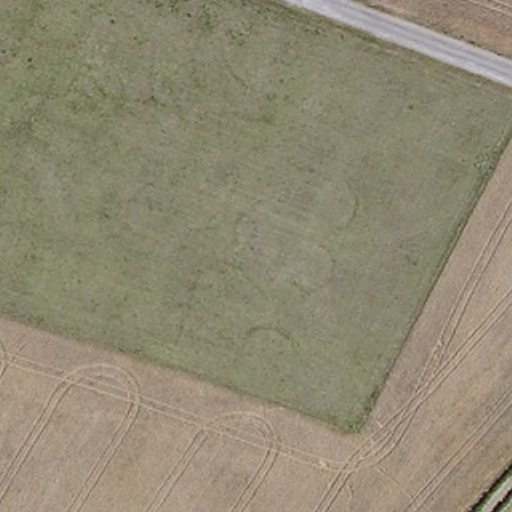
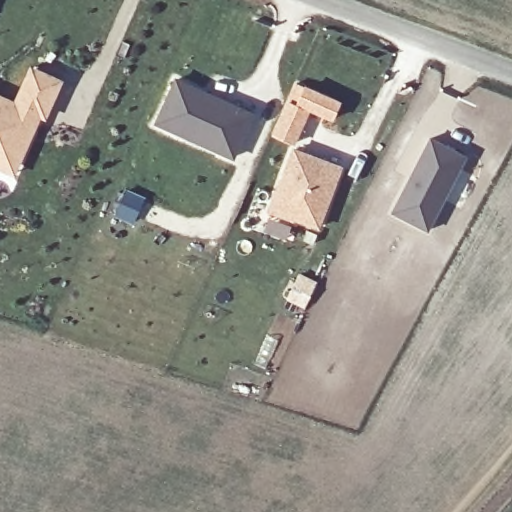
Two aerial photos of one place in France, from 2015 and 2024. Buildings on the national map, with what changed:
new [(64,81),(48,120),(42,117),(16,177),(0,170),(0,93),(15,100),(29,66),(64,81)]
new [(154,124),(173,80),(250,115),(231,159),(214,150),(183,136),(154,124)]
new [(430,137),(464,155),(427,230),(391,212),(430,137)]
new [(290,150),(337,168),(315,229),(268,210),(290,150)]

